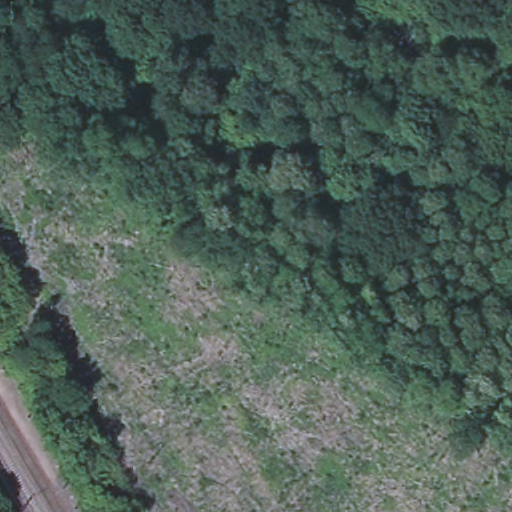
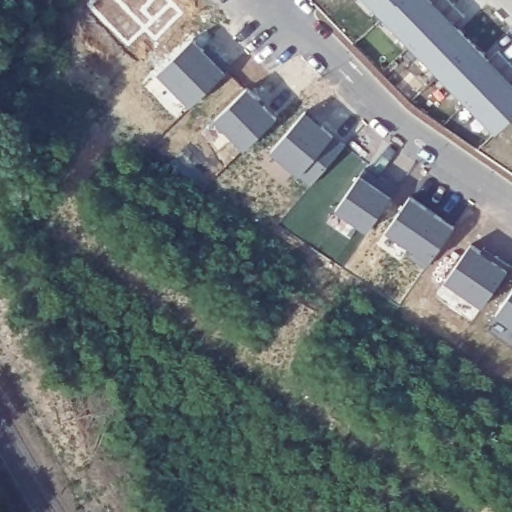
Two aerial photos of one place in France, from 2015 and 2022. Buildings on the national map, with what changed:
new [(154,0),(167,0),(181,15),(156,41),(145,29),(128,46),(90,5),(95,0),(148,0),(151,3),(154,0)]
new [(368,0),(393,0),(380,13),(368,0)]
new [(451,0),(451,1),(408,42),(380,13),(393,0),(451,0)]
new [(451,1),(462,13),(452,23),(469,40),(436,71),(408,42),(451,1)]
new [(200,48),(205,44),(213,54),(225,66),(187,103),(155,70),(190,36),(200,48)]
new [(469,40),(486,58),(496,47),(508,60),(465,101),(436,71),(469,40)]
new [(512,64),(512,78),(509,81),(512,84),(512,112),(493,130),(465,101),(508,60),(512,64)]
new [(244,85),(252,94),(250,96),(259,104),(261,103),(273,115),(241,146),(211,116),(244,85)]
new [(303,109),(319,123),(342,143),(307,183),(268,148),(302,109),(303,109)]
new [(361,167),(375,176),(377,174),(394,186),(364,229),(332,208),(360,167),(361,167)]
new [(406,194),(450,225),(422,266),(408,256),(412,249),(382,228),(406,194)]
new [(478,250),(480,246),(492,254),(507,265),(479,305),(442,280),(467,243),(478,250)]
new [(512,327),(492,314),(512,284),(512,327)]

